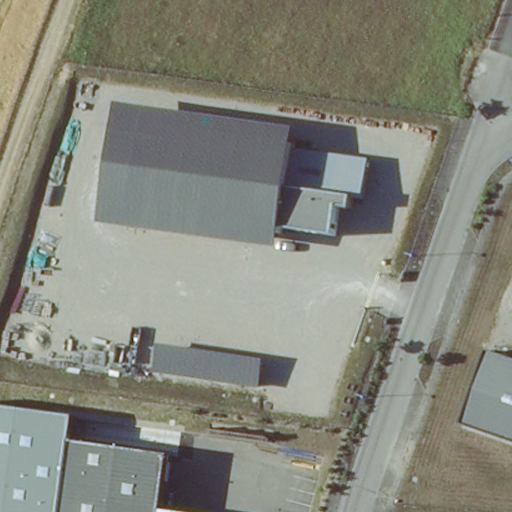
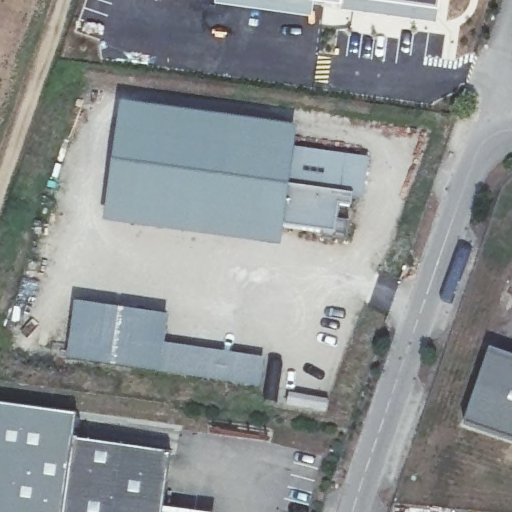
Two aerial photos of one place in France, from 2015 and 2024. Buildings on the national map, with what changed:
new [(368,17),(340,12),(315,6),(313,21),(213,6),(214,0),(284,0),(341,0),(441,0),(437,25),(368,17)]
unchanged [(295,127),(294,142),(375,155),(370,197),(353,195),(350,209),(338,207),(334,235),(283,230),(281,248),(104,226),(121,105),(295,127)]
new [(67,360),(74,303),(168,317),(165,346),(160,345),(156,375),(67,360)]
new [(264,360),(262,390),(156,375),(160,345),(264,360)]
unchanged [(491,350),(512,357),(512,439),(467,423),(491,350)]
unchanged [(69,512),(0,512),(0,407),(75,416),(73,446),(79,447),(71,498),(69,512)]
unchanged [(79,447),(170,460),(164,512),(69,512),(79,447)]

